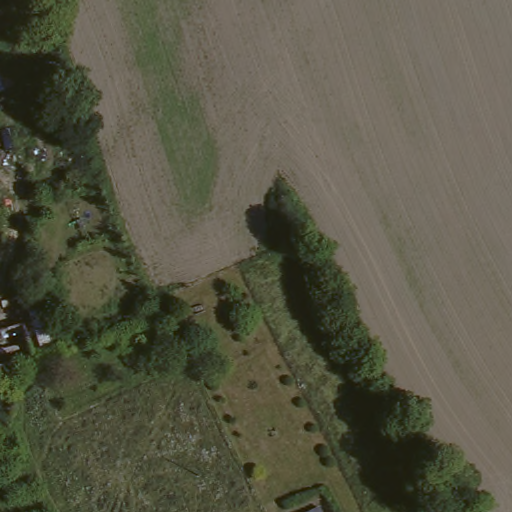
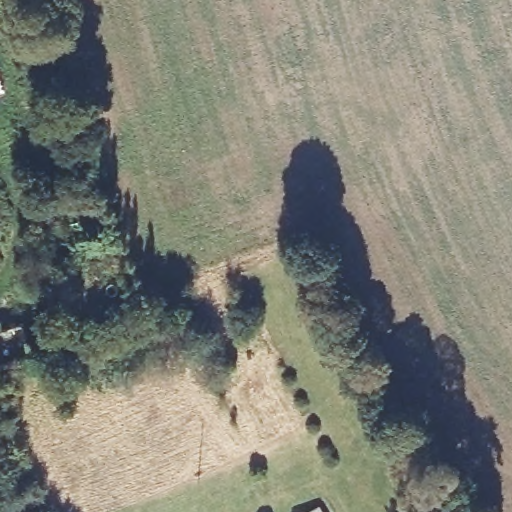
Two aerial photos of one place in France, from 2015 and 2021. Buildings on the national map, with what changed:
unchanged [(29,318),(43,315),(50,336),(35,340),(38,352),(0,362),(0,327),(29,318)]
unchanged [(330,512),(298,512),(297,511),(322,498),(330,512)]

